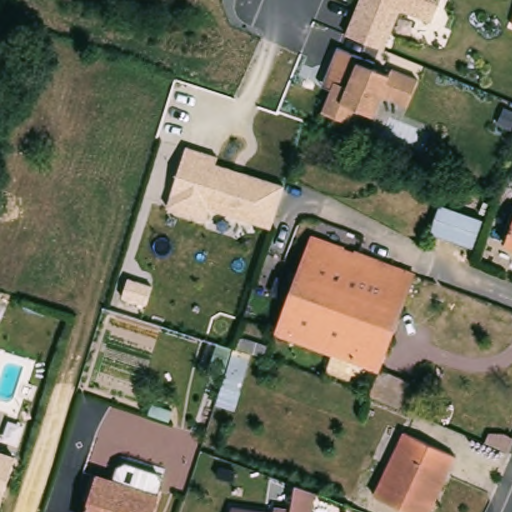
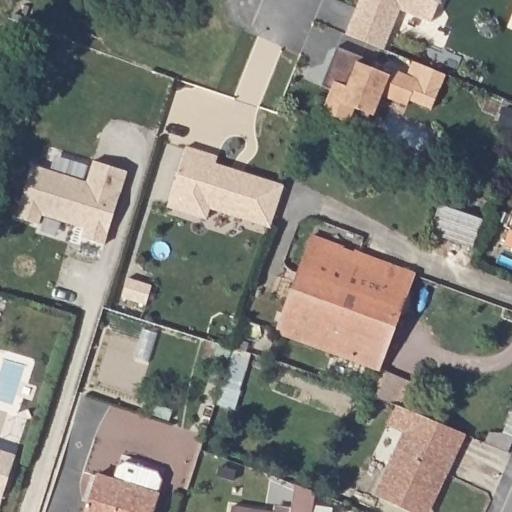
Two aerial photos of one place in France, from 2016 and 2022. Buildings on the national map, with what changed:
unchanged [(433,22),(402,10),(385,50),(347,34),(361,0),(442,0),(433,22)]
new [(512,19),(512,24),(510,23),(512,19)]
unchanged [(373,62),(372,70),(388,75),(391,69),(418,80),(408,107),(381,96),(374,116),(355,110),(350,124),(320,112),(327,88),(321,85),(335,46),(373,62)]
unchanged [(24,106),(35,57),(63,64),(51,112),(24,106)]
unchanged [(215,165),(283,185),(272,227),(210,210),(205,221),(167,209),(184,147),(217,155),(215,165)]
new [(42,213),(39,222),(16,215),(32,164),(87,180),(94,159),(127,170),(105,242),(82,235),(85,226),(75,223),(42,213)]
unchanged [(316,236),(418,275),(382,367),(280,330),(316,236)]
unchanged [(510,242),(512,237),(512,243),(510,242)]
unchanged [(239,390),(221,384),(232,347),(250,353),(239,390)]
unchanged [(408,431),(460,457),(452,475),(433,512),(416,512),(378,493),(408,431)]
unchanged [(0,497),(0,453),(15,458),(2,497),(0,497)]
unchanged [(160,495),(154,512),(84,512),(96,475),(160,495)]
unchanged [(318,490),(315,512),(296,512),(300,483),(318,490)]
unchanged [(279,512),(236,512),(237,505),(279,512)]

